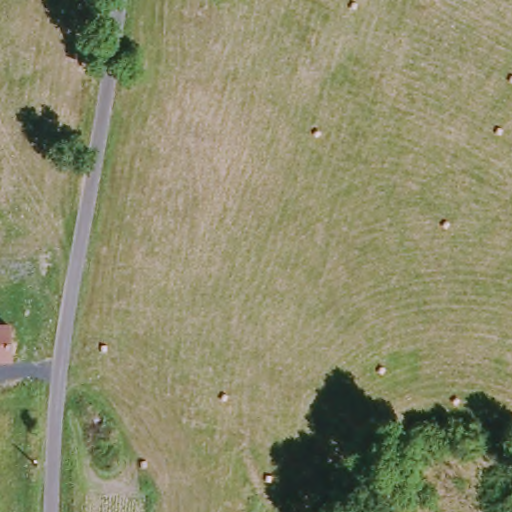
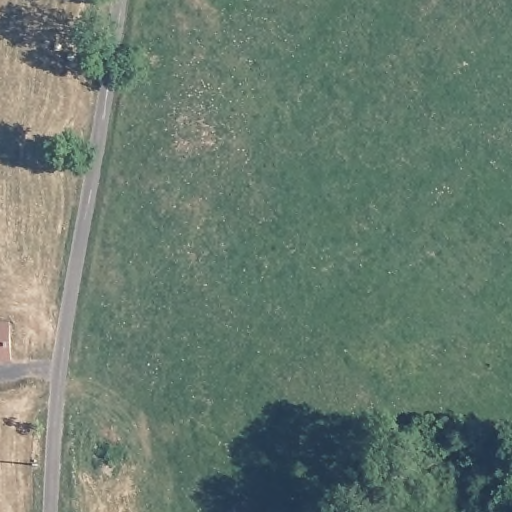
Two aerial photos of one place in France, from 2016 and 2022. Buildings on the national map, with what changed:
unchanged [(15,362),(0,361),(0,324),(15,324),(15,362)]

